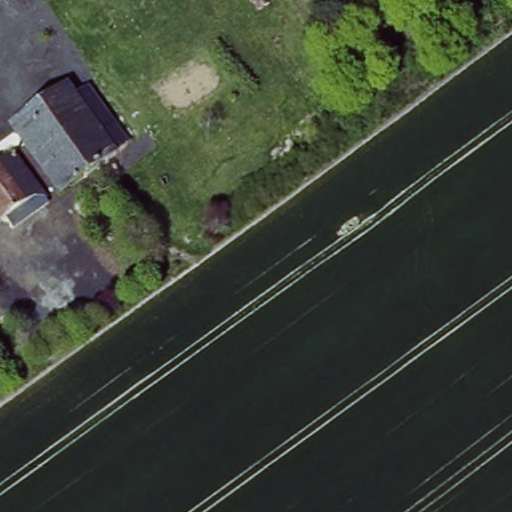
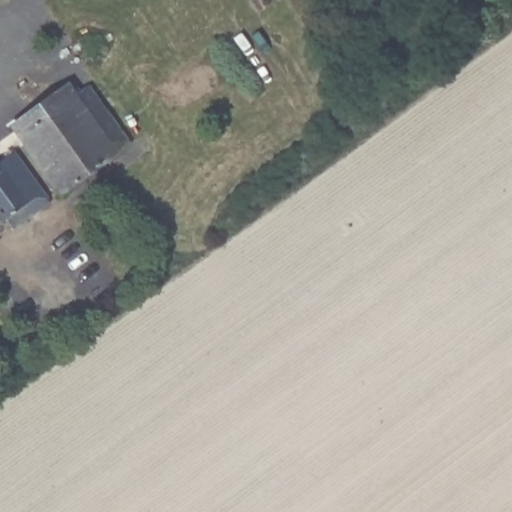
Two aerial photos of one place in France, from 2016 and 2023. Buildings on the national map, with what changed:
unchanged [(475,0),(476,0),(484,18),(459,29),(449,12),(475,0)]
unchanged [(62,190),(13,126),(74,80),(123,146),(95,166),(62,190)]
unchanged [(41,198),(10,220),(0,209),(0,160),(8,153),(41,198)]

